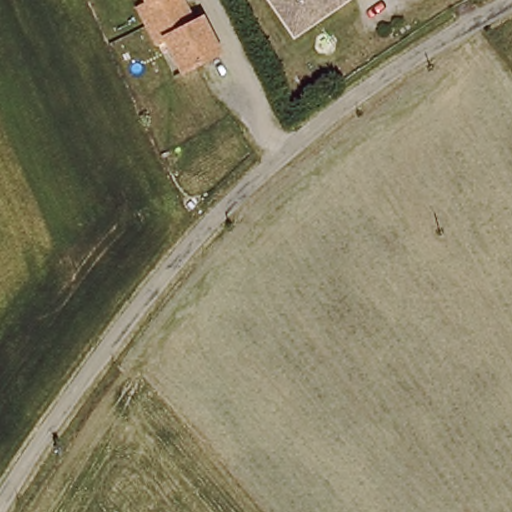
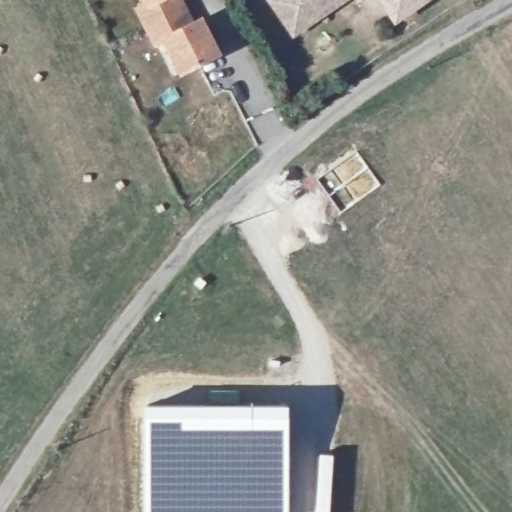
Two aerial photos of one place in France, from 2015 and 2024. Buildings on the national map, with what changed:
unchanged [(190,26),(200,21),(217,55),(180,73),(164,40),(154,45),(146,27),(137,9),(146,5),(144,0),(178,0),(182,9),(190,26)]
unchanged [(288,29),(270,2),(273,0),(352,0),(330,15),(294,38),(288,29)]
new [(288,512),(146,512),(146,407),(288,407),(288,512)]

